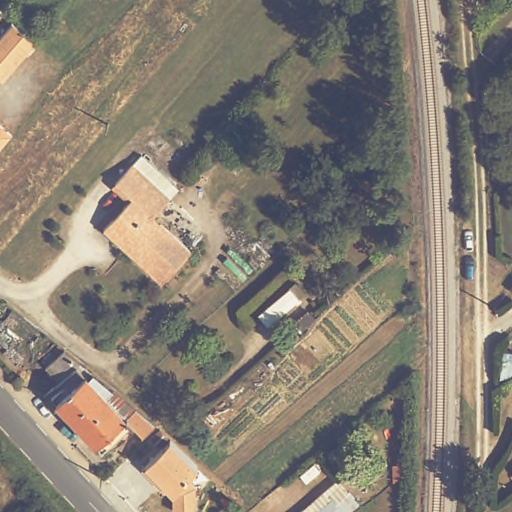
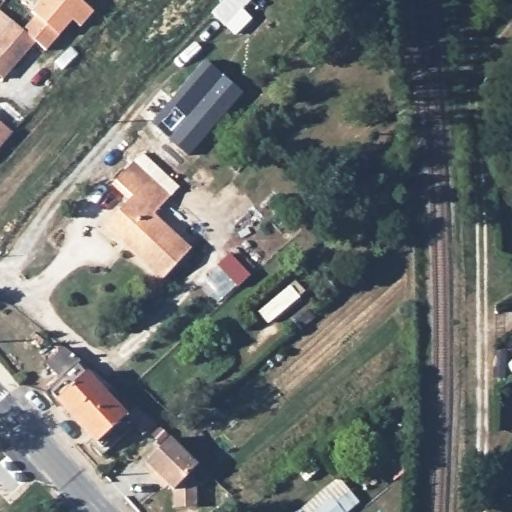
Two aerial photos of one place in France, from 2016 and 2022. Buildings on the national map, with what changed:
new [(34,17),(30,14),(42,0),(78,0),(94,14),(79,30),(71,22),(46,53),(35,44),(21,31),(34,17)]
new [(0,36),(0,11),(11,23),(0,36)]
unchanged [(5,80),(0,75),(0,36),(11,23),(35,44),(5,80)]
new [(206,62),(242,93),(188,155),(152,124),(206,62)]
unchanged [(0,146),(0,119),(14,130),(0,146)]
unchanged [(126,196),(110,181),(127,162),(165,198),(149,216),(184,250),(154,281),(98,227),(126,196)]
unchanged [(259,316),(289,290),(295,285),(304,295),(299,300),(269,326),(259,316)]
unchanged [(145,438),(137,430),(109,455),(51,393),(62,383),(48,368),(66,350),(104,380),(132,405),(143,414),(158,426),(145,438)]
unchanged [(201,468),(189,480),(195,488),(195,508),(174,511),(170,494),(143,468),(170,440),(201,468)]
unchanged [(309,512),(329,495),(343,482),(347,486),(362,504),(353,512),(309,512)]
unchanged [(308,512),(306,512),(307,511),(308,512)]

